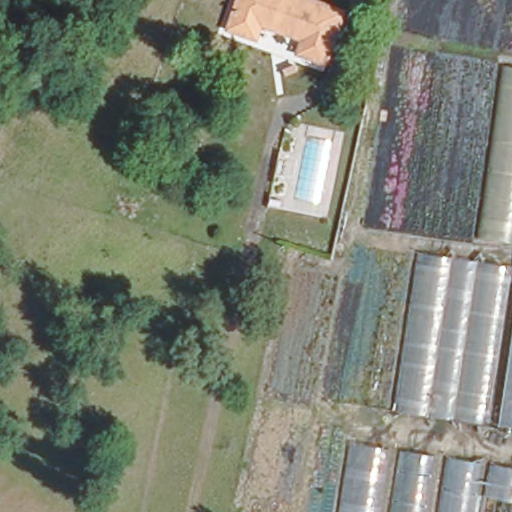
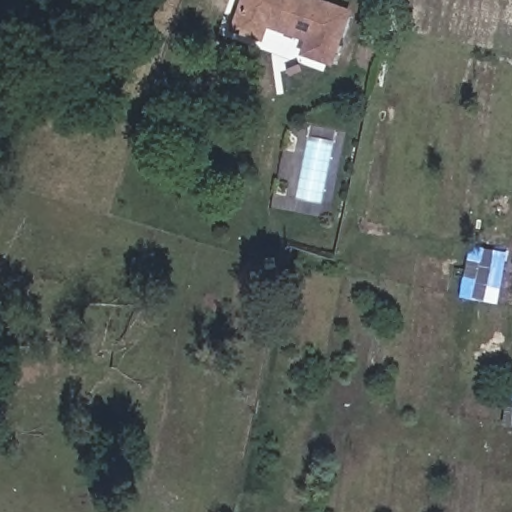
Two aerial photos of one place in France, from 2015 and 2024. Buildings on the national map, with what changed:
unchanged [(294,42),(298,30),(260,16),(254,28),(223,18),(230,0),(325,0),(343,7),(324,53),(294,42)]
new [(458,297),(468,245),(503,252),(495,304),(458,297)]
demolished [(481,422),(389,407),(417,254),(501,266),(481,422)]
demolished [(512,465),(512,512),(383,512),(392,448),(512,465)]

